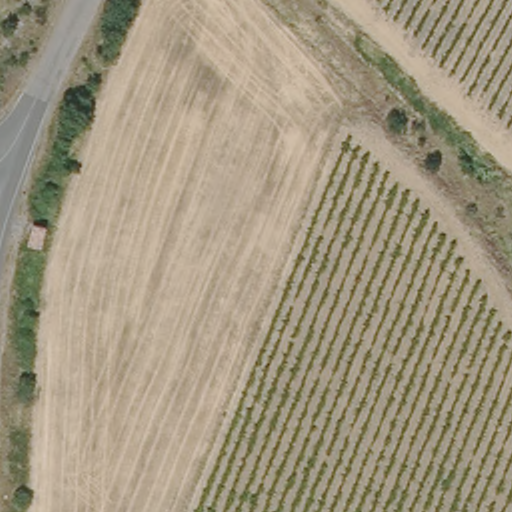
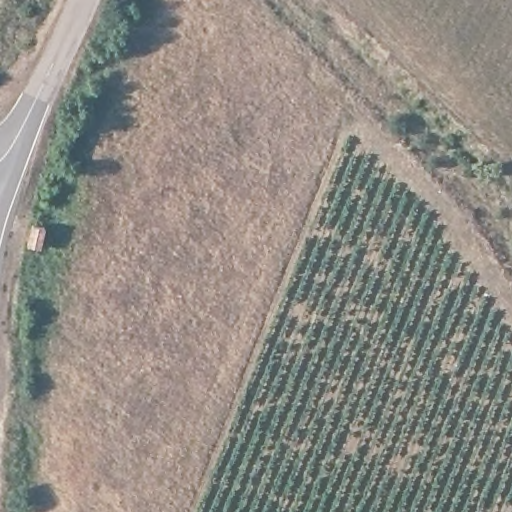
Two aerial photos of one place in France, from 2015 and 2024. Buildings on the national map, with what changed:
[]

